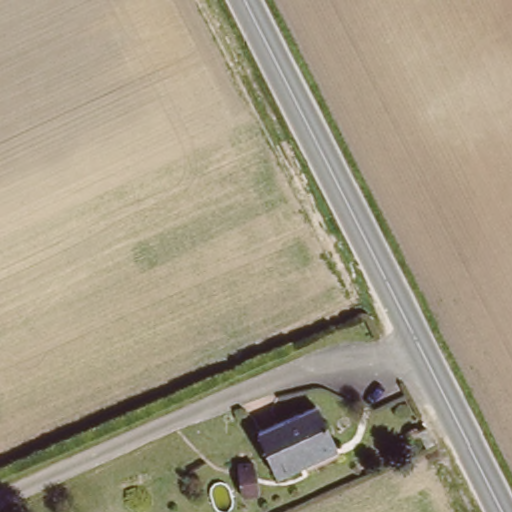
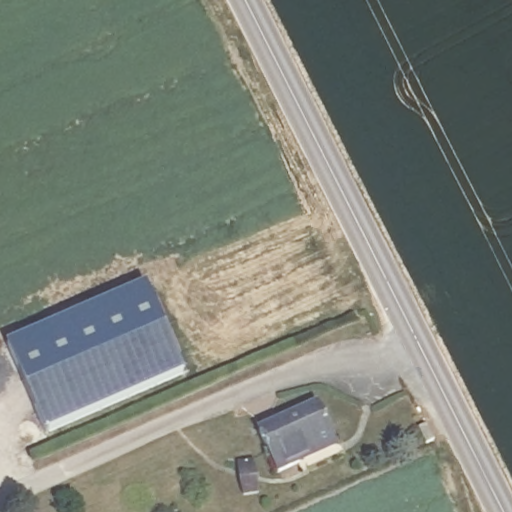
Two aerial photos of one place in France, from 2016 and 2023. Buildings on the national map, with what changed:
new [(143,286),(182,373),(46,433),(7,345),(143,286)]
unchanged [(312,401),(332,446),(273,473),(252,428),(312,401)]
unchanged [(250,466),(254,497),(237,500),(233,469),(250,466)]

